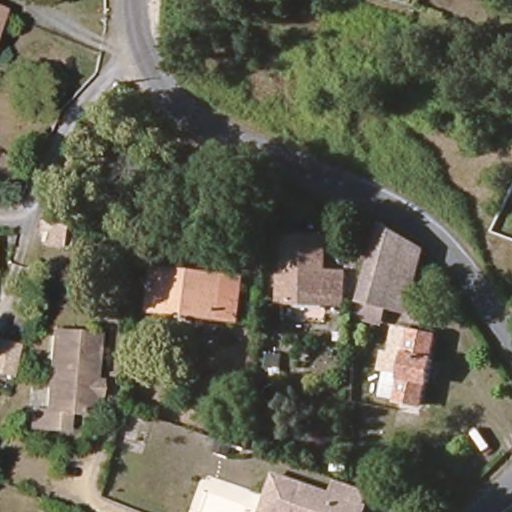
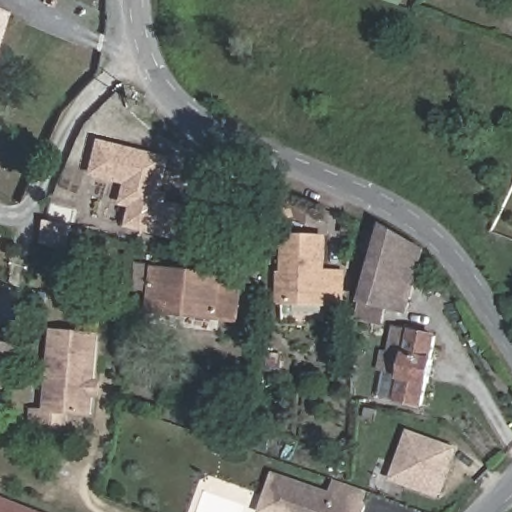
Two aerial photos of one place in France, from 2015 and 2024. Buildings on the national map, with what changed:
new [(171,157),(160,199),(170,201),(188,205),(179,239),(125,227),(130,208),(120,205),(125,185),(90,176),(99,139),(171,157)]
unchanged [(65,230),(59,250),(37,244),(41,224),(65,230)]
unchanged [(402,242),(385,309),(382,320),(358,315),(380,227),(402,242)]
unchanged [(280,274),(285,274),(288,237),(327,240),(323,275),(342,277),(339,305),(282,301),(278,301),(280,274)]
unchanged [(409,312),(385,309),(402,242),(421,255),(409,312)]
unchanged [(238,323),(146,316),(151,278),(152,270),(185,273),(243,280),(238,323)]
unchanged [(512,308),(512,314),(509,310),(512,308)]
unchanged [(36,415),(38,399),(47,400),(55,322),(99,326),(91,405),(67,402),(66,417),(36,415)]
unchanged [(390,402),(395,376),(368,372),(378,326),(438,338),(434,360),(439,362),(435,385),(429,385),(423,410),(390,402)]
unchanged [(14,375),(0,373),(0,341),(17,343),(14,375)]
new [(442,496),(390,479),(408,429),(458,447),(442,496)]
unchanged [(257,511),(270,474),(327,493),(332,478),(340,481),(360,488),(355,502),(360,503),(357,512),(260,512),(257,511)]
new [(40,512),(0,512),(0,496),(40,512)]

